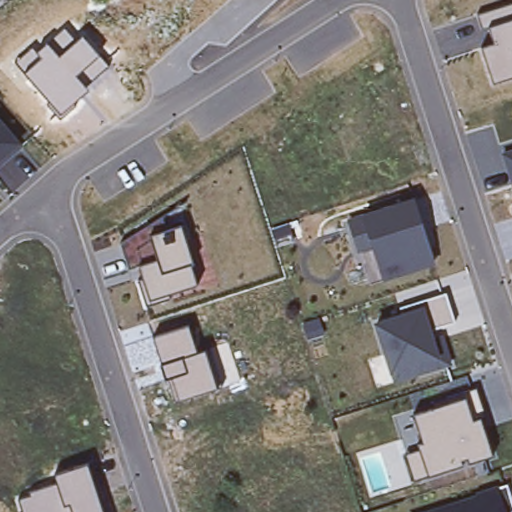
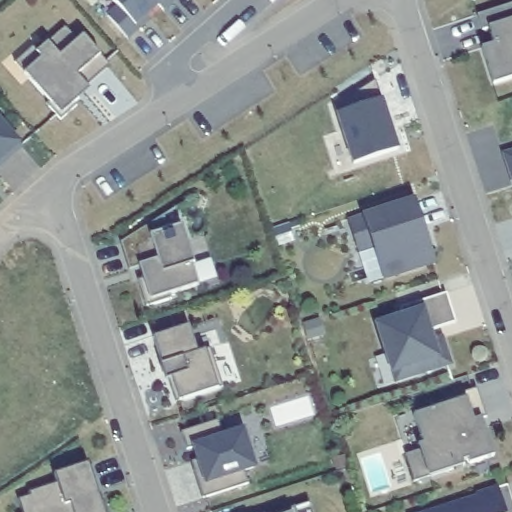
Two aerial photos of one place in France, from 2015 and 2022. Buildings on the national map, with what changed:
new [(151,22),(128,38),(106,12),(118,2),(117,0),(161,0),(144,14),(151,22)]
unchanged [(484,50),(497,45),(491,29),(483,31),(478,16),(512,3),(512,79),(495,85),(484,50)]
unchanged [(26,72),(16,62),(33,48),(37,51),(48,44),(65,29),(76,41),(83,36),(98,55),(108,66),(84,86),(88,90),(61,112),(26,72)]
new [(384,99),(399,146),(353,157),(338,110),(384,99)]
unchanged [(0,161),(0,120),(19,142),(0,161)]
unchanged [(512,155),(512,184),(504,157),(512,155)]
unchanged [(384,282),(374,249),(359,255),(346,221),(415,199),(437,263),(384,282)]
unchanged [(151,301),(139,268),(131,270),(121,242),(161,219),(168,232),(183,227),(198,286),(151,301)]
unchanged [(441,331),(452,366),(394,386),(392,378),(376,325),(403,315),(400,310),(448,296),(456,325),(441,331)]
unchanged [(188,327),(196,355),(206,352),(217,387),(180,400),(173,376),(166,378),(154,337),(188,327)]
unchanged [(432,479),(414,417),(434,410),(432,403),(474,392),(494,460),(432,479)]
new [(219,423),(224,439),(244,433),(256,470),(246,473),(249,486),(204,501),(195,472),(202,470),(196,450),(188,452),(183,434),(219,423)]
unchanged [(19,498),(58,483),(56,475),(89,464),(105,512),(23,512),(19,498)]
unchanged [(512,487),(512,512),(429,512),(512,487)]
unchanged [(291,511),(292,512),(287,512),(291,511)]

